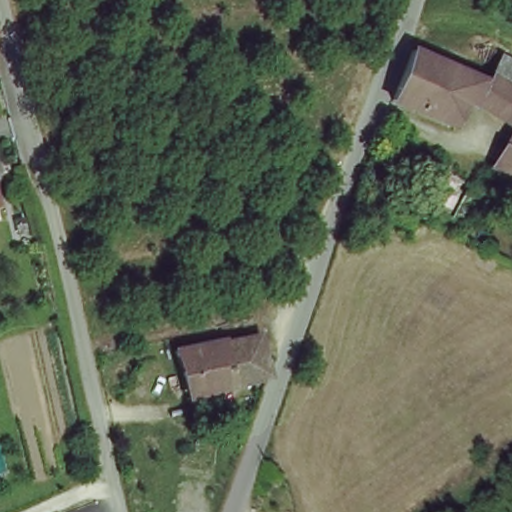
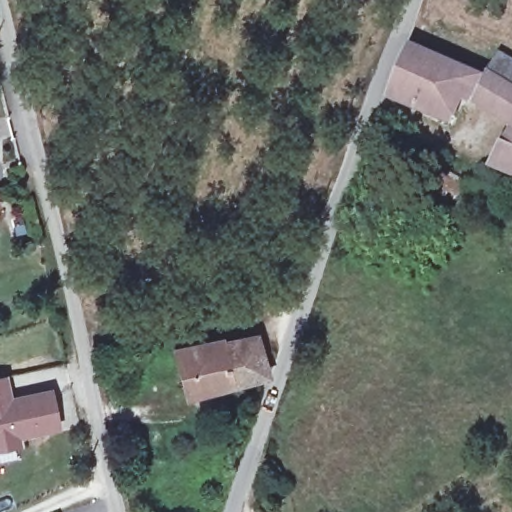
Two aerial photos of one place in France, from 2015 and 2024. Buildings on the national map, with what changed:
unchanged [(455,97),(440,129),(389,104),(408,53),(478,84),(482,76),(512,95),(512,126),(455,97)]
unchanged [(490,60),(493,54),(512,66),(512,95),(482,76),(490,60)]
unchanged [(512,126),(512,156),(502,152),(512,126)]
unchanged [(512,156),(512,181),(494,173),(502,152),(512,156)]
unchanged [(245,382),(194,396),(181,350),(219,338),(225,343),(259,334),(265,360),(269,375),(245,382)]
new [(13,397),(52,388),(61,430),(20,438),(22,446),(0,451),(0,376),(8,374),(13,397)]

